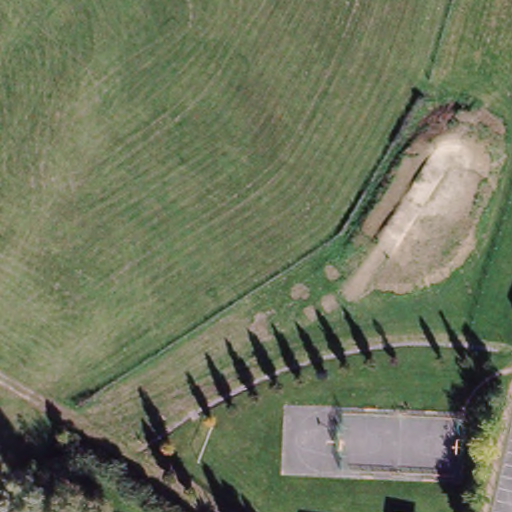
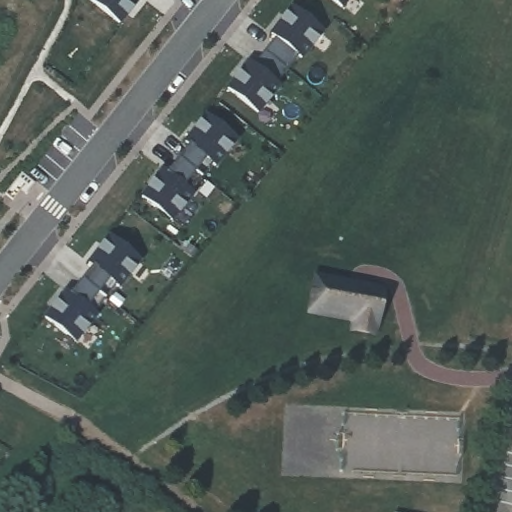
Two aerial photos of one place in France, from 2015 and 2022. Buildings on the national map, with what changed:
new [(120,23),(90,0),(138,0),(120,23)]
new [(342,7),(333,0),(348,0),(342,7)]
new [(250,61),(253,65),(276,37),(272,34),(293,7),(323,31),(302,58),(299,55),(277,83),(280,85),(258,112),(228,88),(250,61)]
new [(163,170),(167,173),(190,145),(185,142),(207,115),(237,139),(215,166),(212,164),(190,191),(193,194),(172,221),(142,197),(163,170)]
new [(67,291),(71,294),(93,266),(89,263),(110,236),(140,260),(119,287),(116,285),(94,313),(97,315),(75,342),(45,318),(67,291)]
unchanged [(512,314),(512,319),(510,318),(512,314)]

